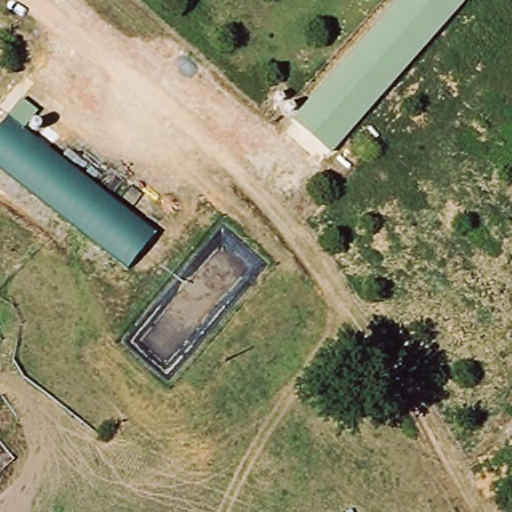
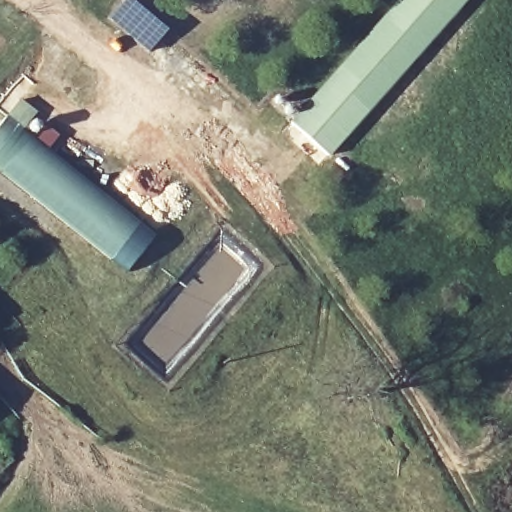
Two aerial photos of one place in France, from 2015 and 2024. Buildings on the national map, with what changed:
new [(150,52),(110,18),(126,0),(132,0),(168,30),(150,52)]
unchanged [(289,119),(397,0),(467,0),(330,155),(289,119)]
unchanged [(116,280),(0,166),(0,125),(26,98),(41,113),(28,127),(149,247),(116,280)]

